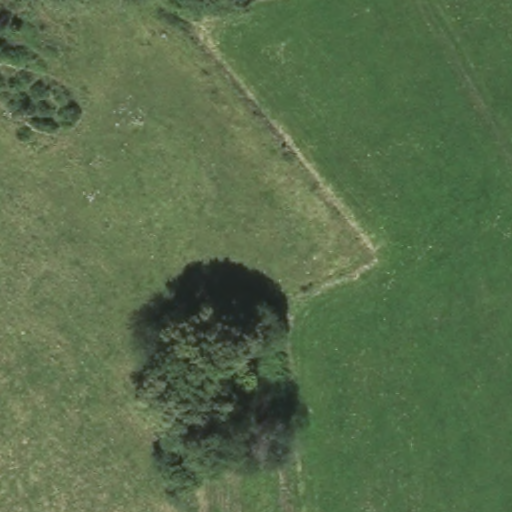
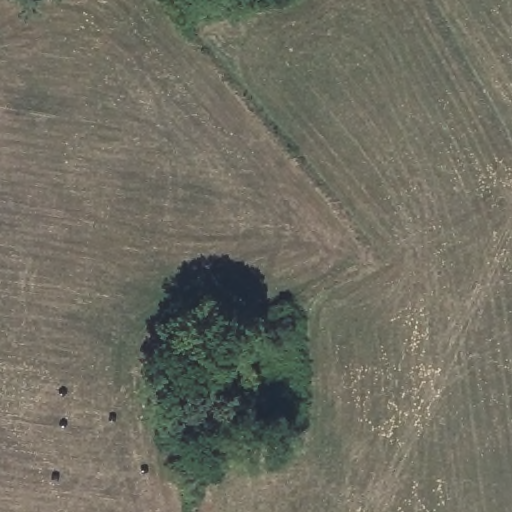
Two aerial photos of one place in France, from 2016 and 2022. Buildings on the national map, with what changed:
unchanged [(196,512),(192,486),(211,485),(214,512),(196,512)]

